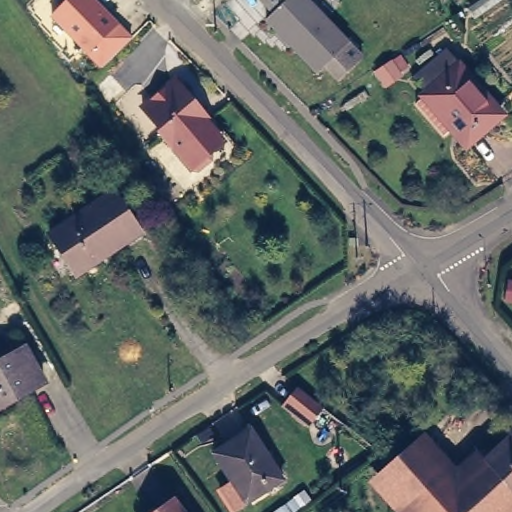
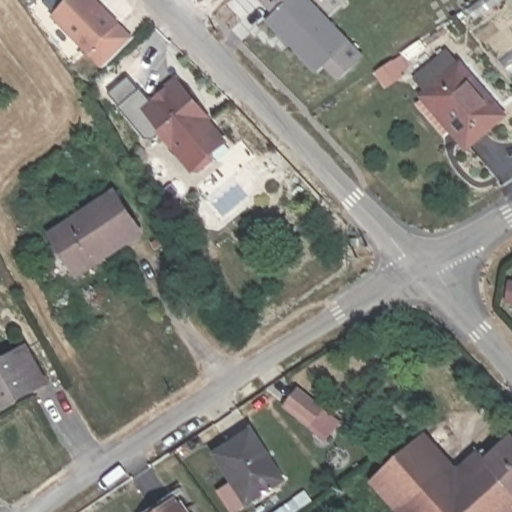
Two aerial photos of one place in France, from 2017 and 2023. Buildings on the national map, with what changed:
unchanged [(98,66),(51,15),(65,0),(97,0),(130,36),(98,66)]
unchanged [(270,14),(257,0),(313,0),(364,56),(336,82),(322,68),(315,74),(263,22),(270,14)]
unchanged [(435,87),(425,72),(457,52),(467,68),(469,66),(477,77),(504,117),(502,119),(466,142),(452,125),(427,92),(435,87)]
unchanged [(208,117),(207,118),(225,141),(189,170),(138,102),(175,77),(208,117)]
unchanged [(69,266),(48,235),(114,196),(141,235),(106,256),(75,275),(69,266)]
unchanged [(42,382),(14,396),(12,392),(2,397),(0,398),(0,361),(25,349),(42,382)]
unchanged [(322,407),(307,423),(284,405),(299,387),(322,407)]
unchanged [(465,474),(512,436),(512,512),(397,512),(367,480),(424,431),(465,474)]
unchanged [(267,458),(273,455),(291,478),(259,501),(242,484),(237,487),(211,457),(246,434),(267,458)]
unchanged [(184,512),(161,512),(176,502),(184,512)]

